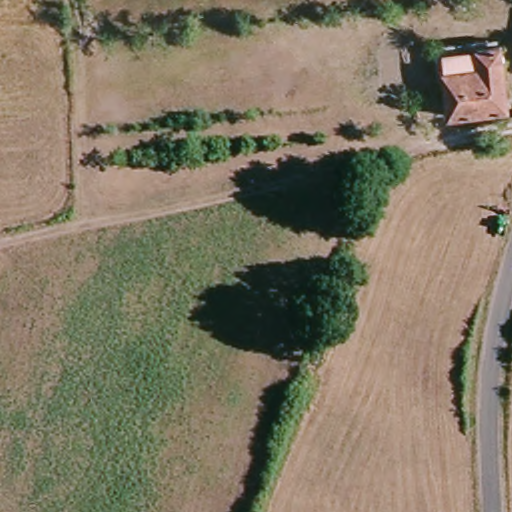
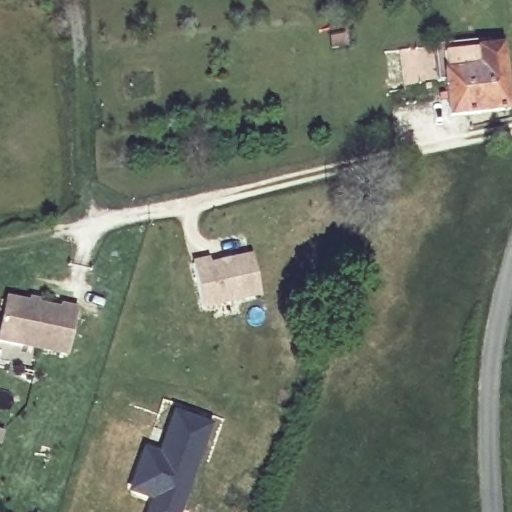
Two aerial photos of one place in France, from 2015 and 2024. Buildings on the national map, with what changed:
unchanged [(512,109),(454,119),(446,73),(504,63),(512,109)]
new [(208,262),(209,266),(251,257),(259,295),(201,308),(191,265),(208,262)]
new [(58,312),(59,309),(75,313),(66,356),(0,342),(0,327),(5,301),(58,312)]
new [(151,430),(166,435),(173,417),(207,428),(178,512),(149,512),(153,501),(129,493),(143,453),(151,430)]

